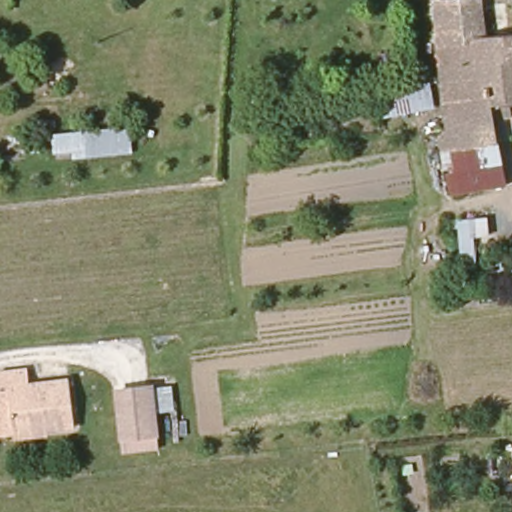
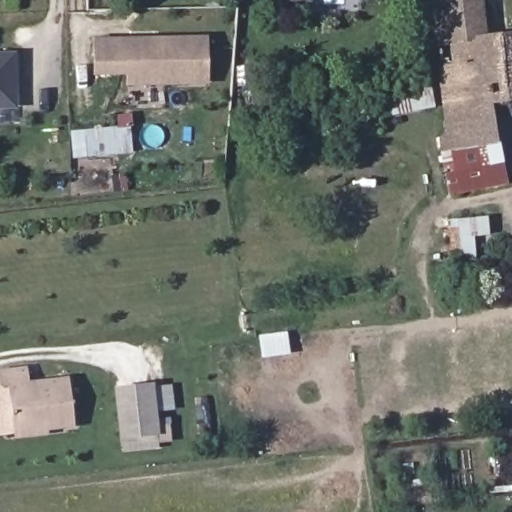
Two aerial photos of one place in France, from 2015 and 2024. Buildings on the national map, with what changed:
unchanged [(278,0),(313,0),(313,1),(278,2),(278,0)]
unchanged [(512,36),(512,60),(443,65),(442,40),(439,40),(437,0),(482,0),(484,37),(512,36)]
new [(125,86),(124,75),(94,75),(93,38),(208,35),(209,85),(125,86)]
new [(0,110),(0,52),(16,51),(17,110),(0,110)]
unchanged [(447,169),(441,140),(445,132),(443,65),(512,60),(512,119),(498,120),(498,124),(503,162),(505,187),(460,192),(449,195),(445,170),(447,169)]
unchanged [(435,110),(384,121),(377,96),(430,85),(435,110)]
unchanged [(132,152),(85,154),(85,129),(129,127),(132,152)]
unchanged [(452,220),(460,219),(480,217),(482,235),(460,237),(453,237),(452,220)]
unchanged [(511,246),(512,246),(512,253),(511,246)]
unchanged [(5,372),(35,370),(37,385),(76,381),(81,428),(21,435),(16,388),(7,390),(5,372)]
unchanged [(122,452),(114,388),(153,385),(157,448),(122,452)]
unchanged [(16,388),(21,435),(0,437),(0,390),(7,390),(16,388)]

